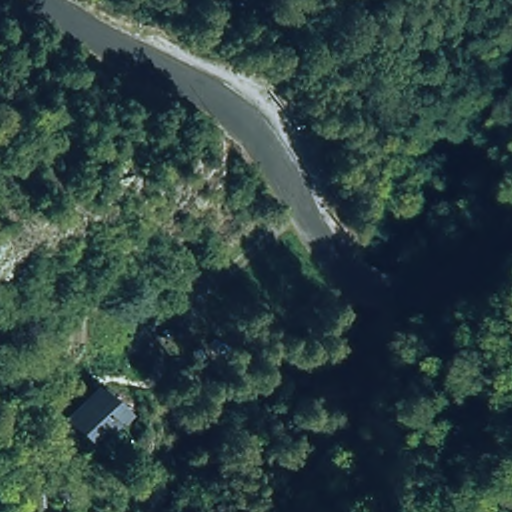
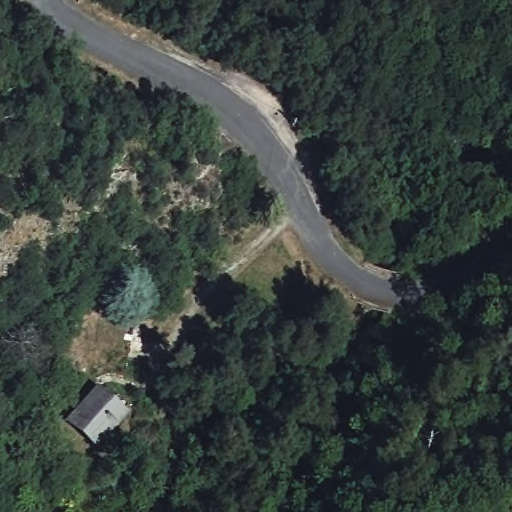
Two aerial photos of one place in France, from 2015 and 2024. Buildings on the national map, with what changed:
unchanged [(130,356),(88,347),(98,301),(137,309),(130,356)]
unchanged [(128,413),(95,450),(64,419),(98,384),(128,413)]

